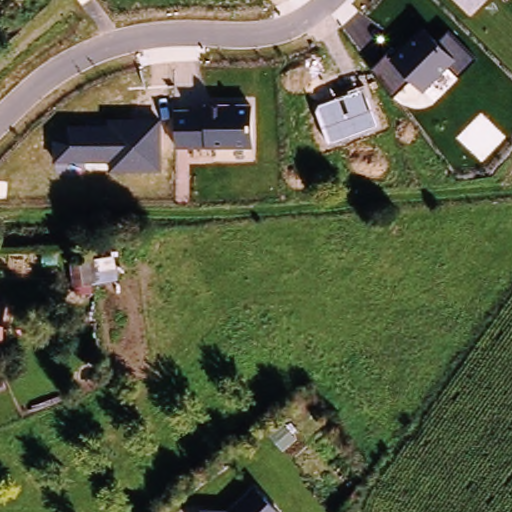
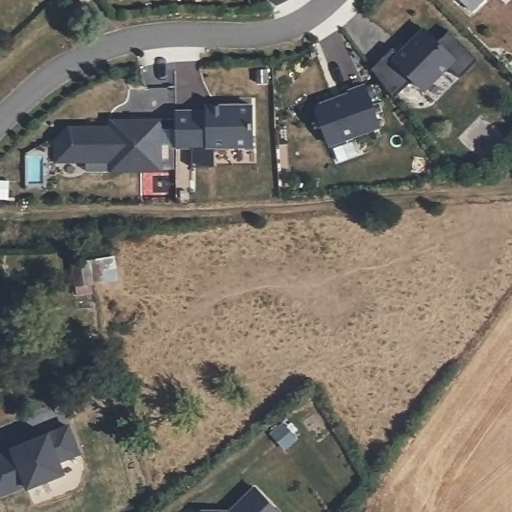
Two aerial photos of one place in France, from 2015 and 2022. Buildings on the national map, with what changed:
unchanged [(462,0),(480,0),(470,9),(462,0)]
unchanged [(390,50),(395,54),(422,28),(437,42),(448,31),(475,59),(457,76),(447,66),(423,91),(411,80),(394,97),(373,65),(390,50)]
unchanged [(365,87),(377,125),(327,142),(316,111),(320,104),(365,87)]
unchanged [(205,110),(206,102),(253,104),(253,146),(175,147),(175,110),(205,110)]
unchanged [(110,126),(110,119),(161,119),(160,169),(110,171),(110,161),(52,162),(52,139),(68,126),(110,126)]
unchanged [(5,302),(0,342),(0,341),(0,301),(5,302)]
new [(60,461),(65,475),(27,490),(24,484),(0,496),(0,452),(10,448),(49,432),(68,423),(82,454),(60,461)]
unchanged [(282,512),(202,512),(202,507),(230,508),(256,486),(282,512)]

